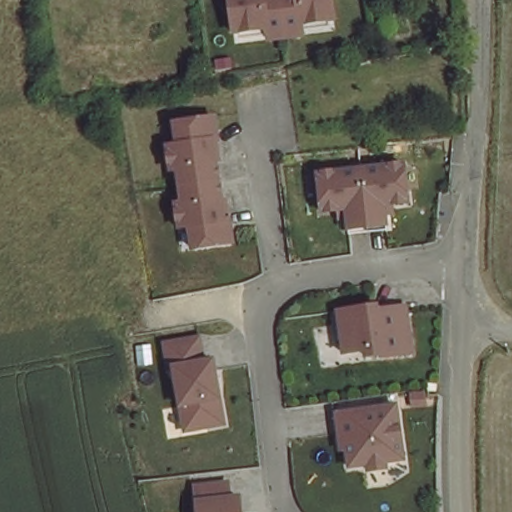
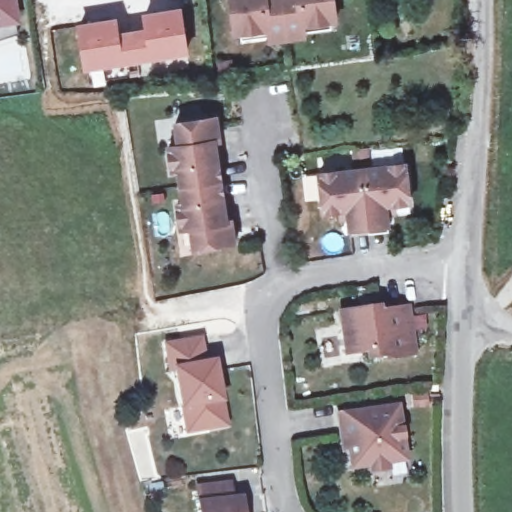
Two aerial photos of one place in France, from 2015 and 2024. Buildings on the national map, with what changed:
new [(0,39),(0,0),(12,0),(17,34),(0,39)]
unchanged [(272,39),(270,28),(237,33),(231,0),(283,0),(289,36),(272,39)]
unchanged [(304,22),(305,34),(289,36),(283,0),(334,0),(337,17),(304,22)]
new [(151,31),(148,16),(184,10),(190,51),(140,60),(136,34),(151,31)]
new [(117,21),(120,36),(136,34),(140,60),(89,68),(82,26),(117,21)]
unchanged [(186,163),(177,164),(176,163),(172,139),(182,138),(180,116),(221,111),(224,134),(219,135),(222,157),(225,174),(192,179),(188,179),(186,163)]
unchanged [(405,158),(410,196),(386,199),(389,218),(370,221),(366,187),(362,163),(405,158)]
unchanged [(351,223),(349,204),(325,207),(320,169),(362,163),(366,187),(370,221),(351,223)]
unchanged [(192,179),(225,174),(231,214),(236,213),(239,237),(197,242),(194,221),(185,222),(181,197),(191,196),(188,179),(192,179)]
unchanged [(362,304),(362,309),(407,306),(411,353),(380,355),(379,345),(342,348),(339,306),(362,304)]
unchanged [(198,337),(202,361),(212,360),(223,425),(184,431),(173,367),(168,368),(164,342),(198,337)]
unchanged [(401,401),(402,408),(409,455),(391,458),(392,464),(373,467),(372,461),(354,464),(351,436),(350,428),(344,429),(341,409),(401,401)]
unchanged [(238,492),(238,495),(240,512),(198,512),(196,496),(238,492)]

